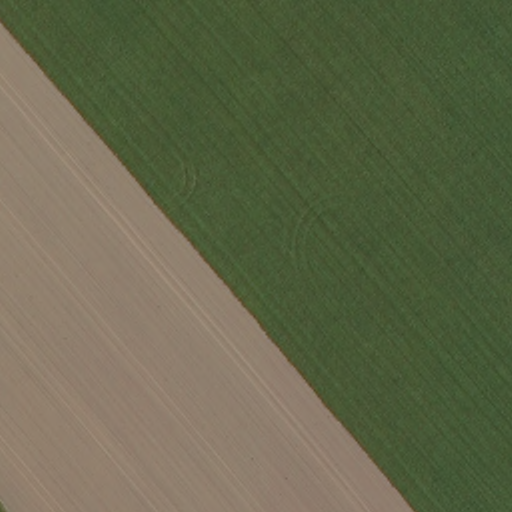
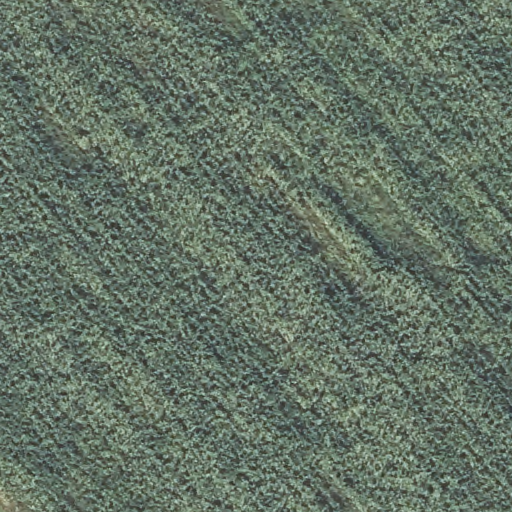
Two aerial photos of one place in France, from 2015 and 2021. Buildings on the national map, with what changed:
[]

